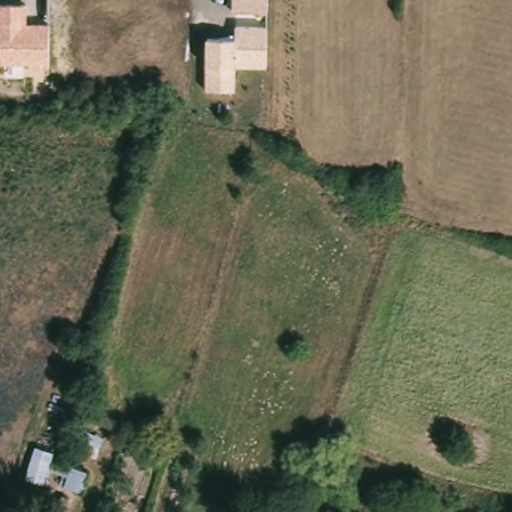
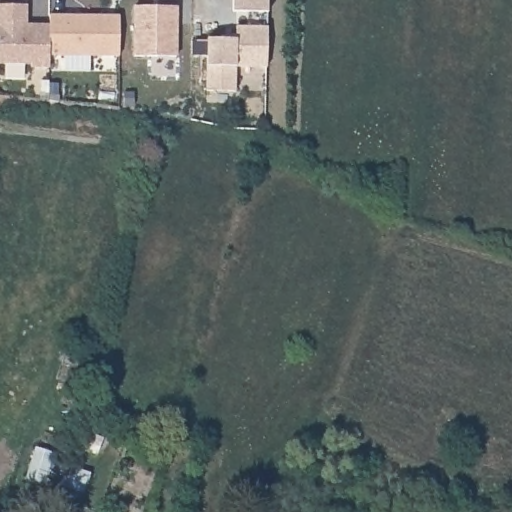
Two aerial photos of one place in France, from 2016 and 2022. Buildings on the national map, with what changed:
new [(265,0),(264,12),(229,11),(229,0),(265,0)]
unchanged [(29,65),(0,64),(0,6),(26,5),(26,25),(49,24),(50,67),(29,69),(29,65)]
new [(135,6),(176,6),(176,56),(135,56),(135,6)]
new [(49,24),(49,15),(119,14),(119,56),(50,55),(49,24)]
unchanged [(235,69),(235,91),(206,90),(206,65),(207,39),(235,39),(235,25),(268,26),(267,68),(235,69)]
unchanged [(70,496),(67,504),(60,502),(63,493),(70,496)]

